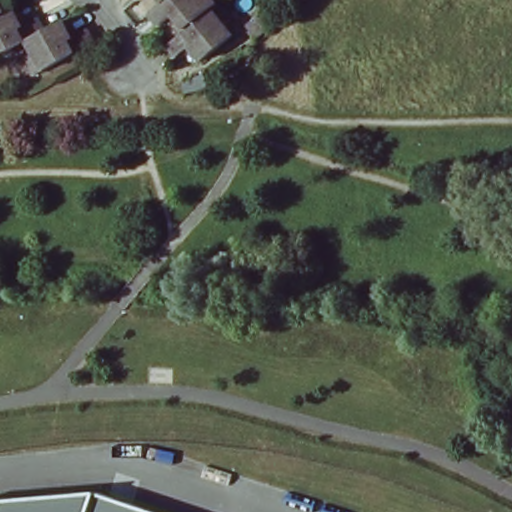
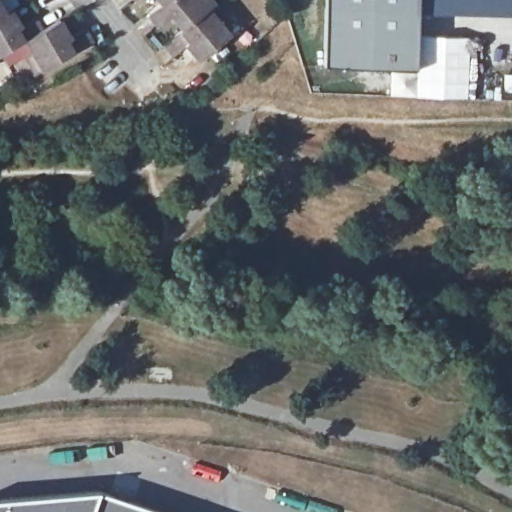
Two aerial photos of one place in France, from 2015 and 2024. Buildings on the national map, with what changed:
unchanged [(5,0),(9,6),(0,11),(0,0),(5,0)]
unchanged [(161,24),(153,14),(166,2),(168,0),(216,0),(219,3),(188,29),(175,14),(161,24)]
unchanged [(164,0),(168,0),(166,2),(164,0)]
new [(417,0),(416,69),(325,66),(326,0),(417,0)]
unchanged [(28,35),(0,51),(0,11),(9,6),(16,3),(27,21),(40,13),(48,24),(28,35)]
unchanged [(233,18),(225,24),(235,34),(204,61),(190,45),(178,55),(169,45),(188,29),(219,3),(233,18)]
unchanged [(67,14),(77,30),(92,22),(100,36),(40,70),(29,51),(35,48),(28,35),(48,24),(67,14)]
new [(442,46),(453,44),(452,38),(470,38),(466,96),(459,96),(460,74),(452,73),(452,70),(442,70),(442,46)]
unchanged [(98,489),(164,512),(0,512),(0,498),(98,489)]

